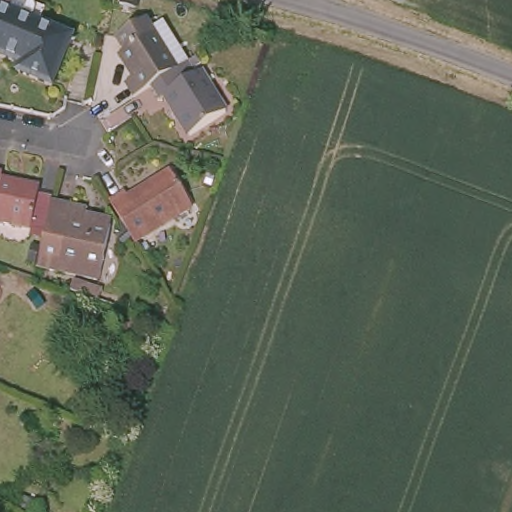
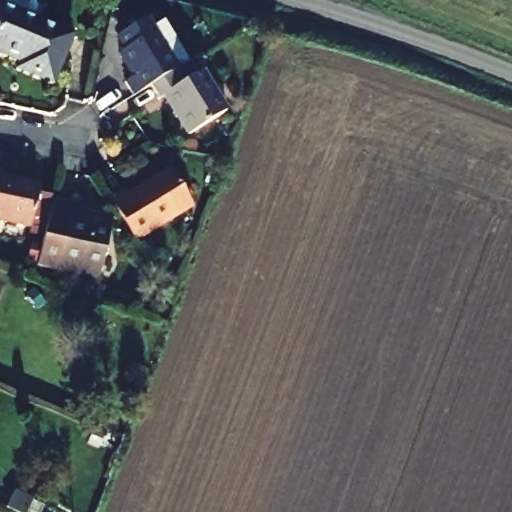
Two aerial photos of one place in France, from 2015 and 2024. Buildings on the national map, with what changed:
unchanged [(34,4),(31,13),(71,31),(50,83),(14,67),(18,59),(0,51),(0,0),(34,0),(34,4)]
unchanged [(151,82),(134,92),(126,78),(135,72),(121,49),(154,28),(178,66),(151,82)]
unchanged [(178,66),(188,60),(196,74),(202,71),(226,110),(188,132),(164,94),(159,96),(151,82),(178,66)]
unchanged [(36,179),(27,219),(0,212),(0,170),(36,179)]
unchanged [(191,211),(133,245),(108,205),(126,194),(129,199),(169,175),(191,211)]
unchanged [(80,212),(78,224),(105,231),(94,283),(33,267),(48,203),(80,212)]

